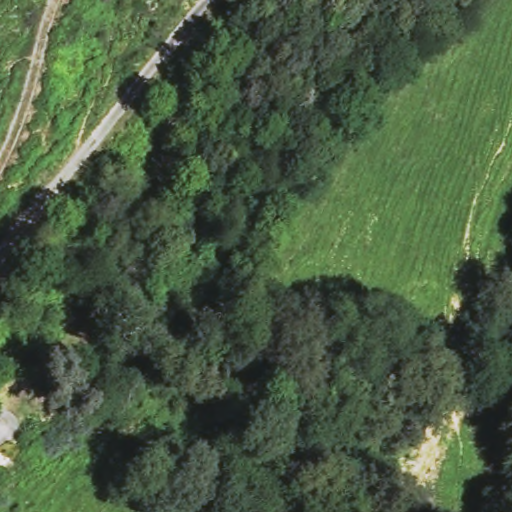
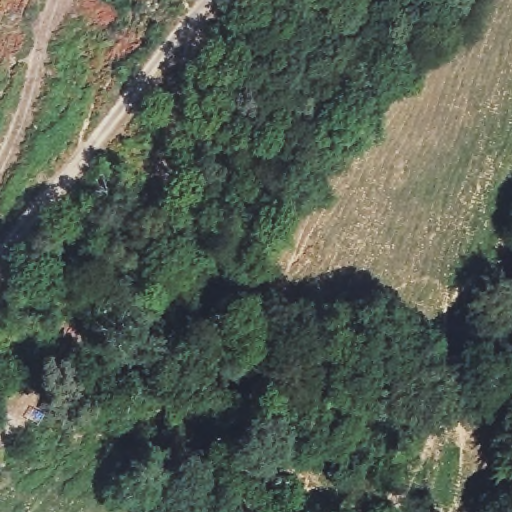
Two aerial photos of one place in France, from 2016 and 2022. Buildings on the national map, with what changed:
unchanged [(11,415),(0,403),(0,392),(21,372),(38,390),(11,415)]

